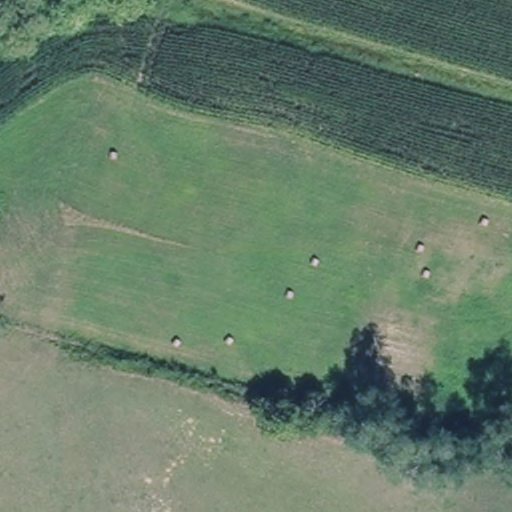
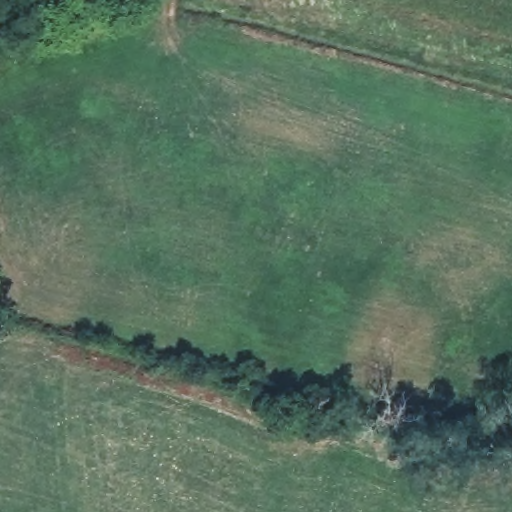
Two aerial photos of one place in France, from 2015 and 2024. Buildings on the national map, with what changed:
[]

